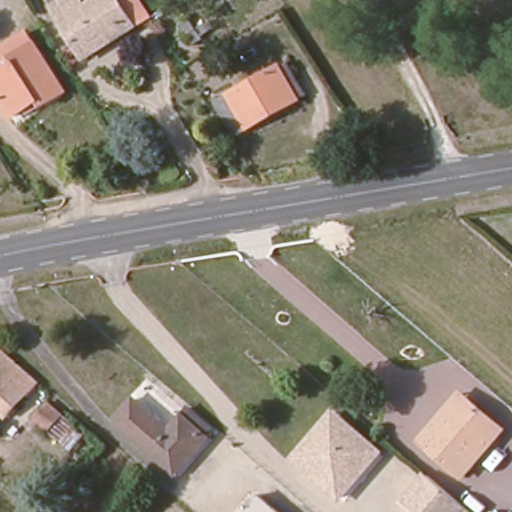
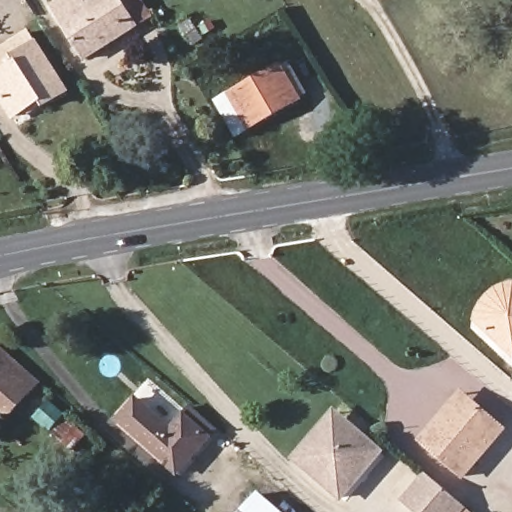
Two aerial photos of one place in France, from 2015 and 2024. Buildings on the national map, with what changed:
unchanged [(60,0),(78,0),(83,6),(93,0),(139,0),(147,13),(132,23),(81,56),(47,8),(60,0)]
unchanged [(0,99),(0,68),(13,62),(8,54),(33,41),(61,91),(38,105),(32,98),(8,113),(0,99)]
unchanged [(215,101),(279,68),(297,101),(235,133),(215,101)]
new [(477,311),(480,305),(484,298),(490,292),(496,288),(506,284),(512,283),(512,358),(474,322),(477,311)]
unchanged [(22,367),(0,389),(0,348),(22,367)]
unchanged [(462,475),(428,444),(420,436),(460,392),(468,399),(503,427),(462,475)]
unchanged [(218,437),(182,478),(120,423),(137,404),(175,435),(193,416),(218,437)]
unchanged [(347,503),(311,472),(301,463),(339,415),(350,425),(385,455),(347,503)]
unchanged [(406,504),(431,475),(474,512),(416,512),(406,504)]
unchanged [(276,512),(243,512),(258,497),(276,512)]

